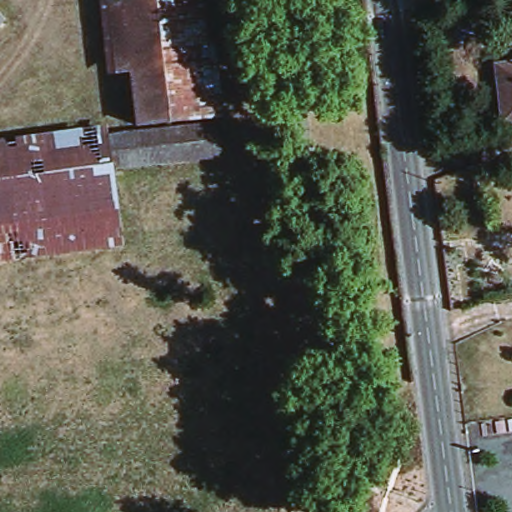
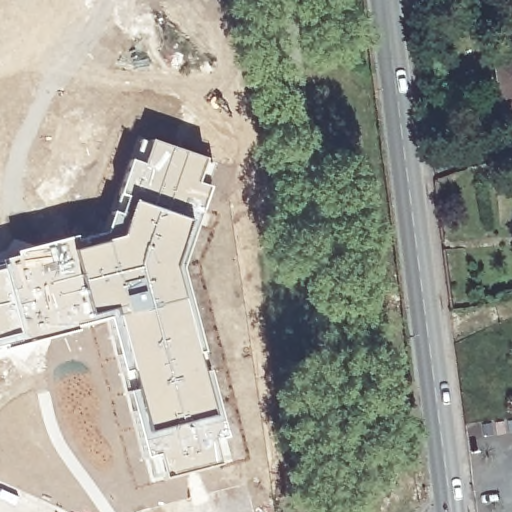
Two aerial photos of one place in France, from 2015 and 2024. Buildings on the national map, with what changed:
demolished [(214,120),(138,129),(132,80),(123,6),(172,0),(210,0),(225,118),(214,120)]
demolished [(2,20),(0,22),(0,18),(2,20)]
unchanged [(494,66),(512,64),(512,122),(501,123),(494,66)]
demolished [(138,129),(214,120),(220,163),(115,176),(110,132),(138,129)]
new [(138,136),(171,145),(216,161),(211,181),(203,211),(181,263),(178,262),(189,220),(116,194),(138,136)]
new [(101,237),(100,231),(103,231),(110,207),(116,194),(189,220),(178,262),(181,263),(181,268),(203,346),(201,346),(203,350),(198,351),(203,369),(209,367),(222,420),(198,423),(145,437),(143,429),(140,420),(121,347),(108,309),(99,311),(101,317),(93,319),(81,285),(73,245),(101,237)]
new [(14,254),(13,250),(69,235),(73,245),(81,285),(93,319),(33,338),(0,343),(0,262),(0,258),(14,254)]

